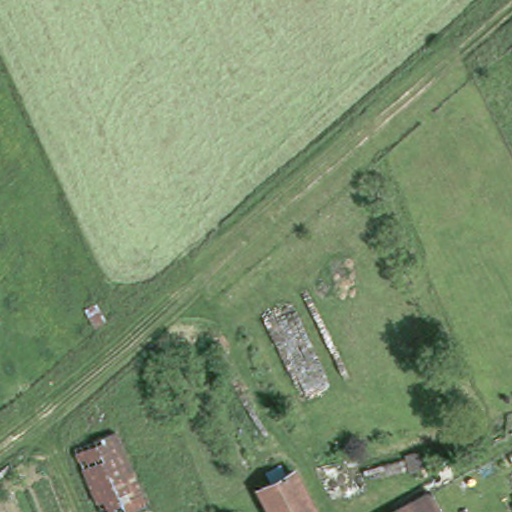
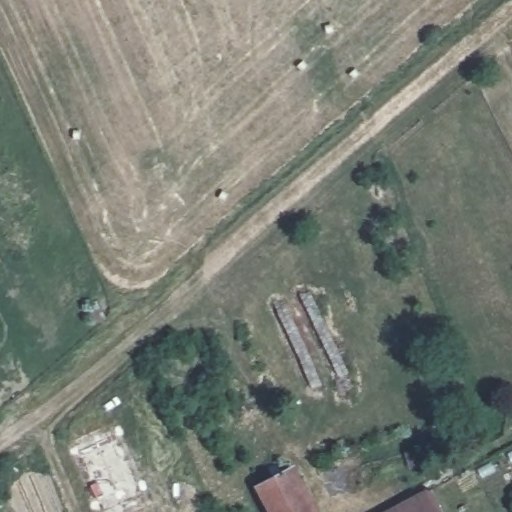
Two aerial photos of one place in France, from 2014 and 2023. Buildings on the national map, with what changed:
unchanged [(292,473),(313,512),(270,512),(259,491),(292,473)]
unchanged [(440,512),(398,512),(430,495),(440,512)]

